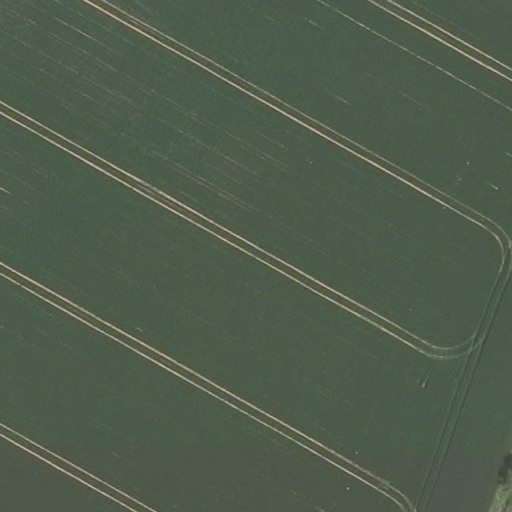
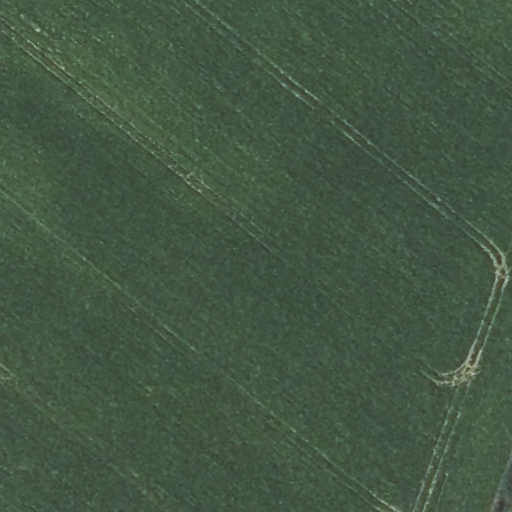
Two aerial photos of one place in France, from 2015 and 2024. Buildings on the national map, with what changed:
[]

